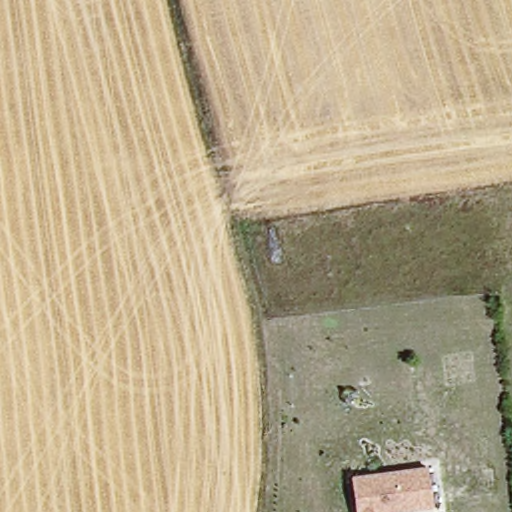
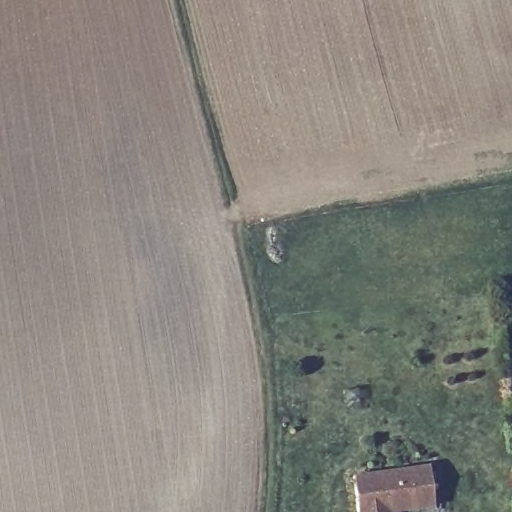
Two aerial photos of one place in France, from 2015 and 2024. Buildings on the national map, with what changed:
unchanged [(428,466),(434,508),(401,512),(356,512),(351,476),(428,466)]

